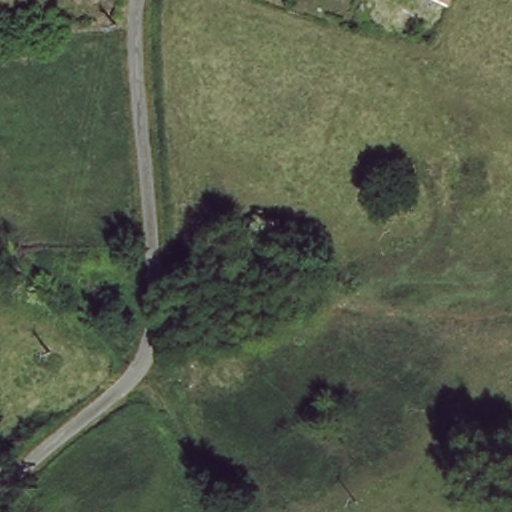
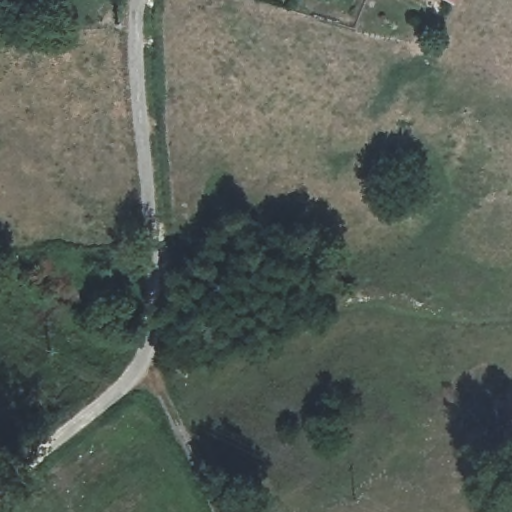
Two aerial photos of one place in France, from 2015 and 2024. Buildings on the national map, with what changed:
unchanged [(449,4),(441,0),(450,0),(449,4)]

